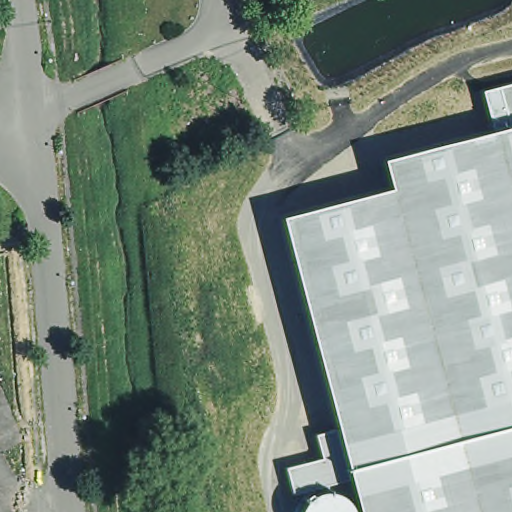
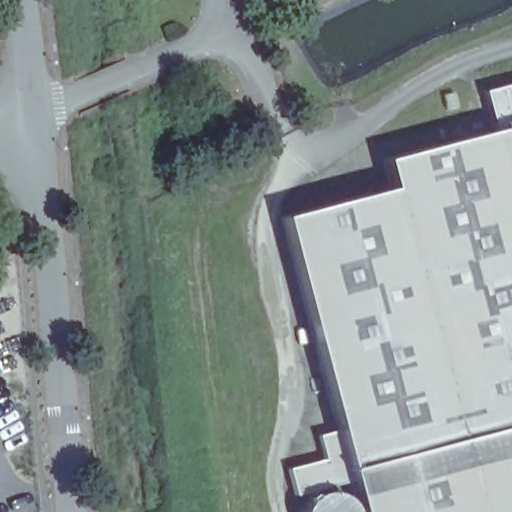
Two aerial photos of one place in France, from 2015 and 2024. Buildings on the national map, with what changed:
unchanged [(352,481),(296,495),(289,469),(324,459),(319,436),(339,431),(282,218),(391,189),(384,159),(494,129),(484,90),(512,83),(512,512),(360,512),(352,481)]

